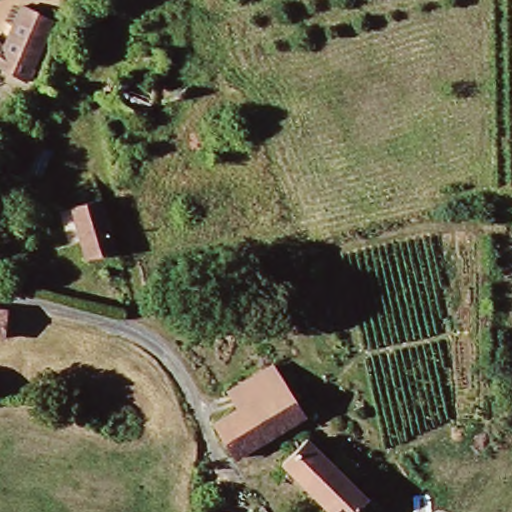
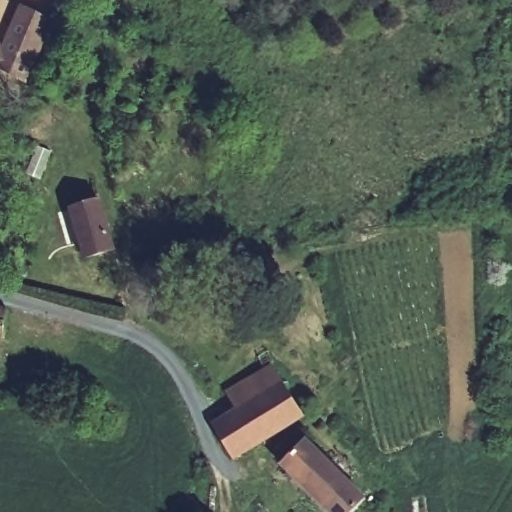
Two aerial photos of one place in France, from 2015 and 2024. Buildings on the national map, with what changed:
unchanged [(52,25),(26,84),(0,68),(0,42),(10,49),(28,15),(52,25)]
unchanged [(132,36),(162,45),(142,111),(110,101),(132,36)]
unchanged [(70,210),(99,201),(115,253),(87,261),(70,210)]
unchanged [(5,332),(0,332),(0,306),(7,307),(5,332)]
unchanged [(288,381),(238,410),(225,392),(277,363),(288,381)]
unchanged [(288,381),(308,414),(237,457),(215,426),(238,410),(288,381)]
unchanged [(350,466),(343,473),(368,496),(352,512),(330,512),(282,467),(307,441),(332,463),(339,455),(350,466)]

